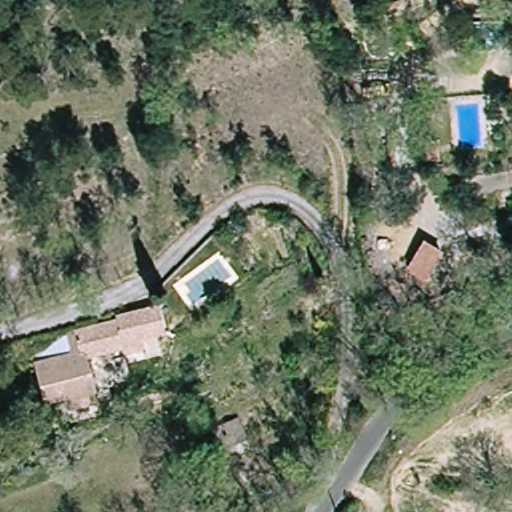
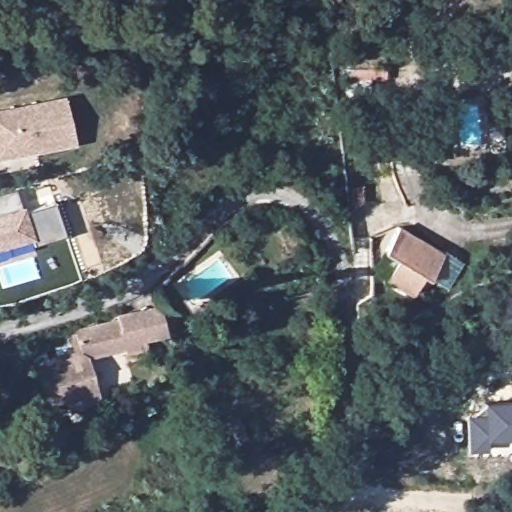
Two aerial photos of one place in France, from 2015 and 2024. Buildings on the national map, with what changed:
new [(76,144),(0,159),(0,111),(65,97),(76,144)]
new [(65,235),(34,240),(0,250),(0,216),(23,209),(26,212),(55,204),(65,235)]
new [(410,263),(425,272),(409,295),(384,280),(396,260),(383,251),(401,225),(424,240),(410,263)]
unchanged [(424,240),(444,251),(429,275),(410,263),(424,240)]
unchanged [(111,319),(124,316),(141,311),(149,308),(156,335),(141,339),(137,340),(139,349),(118,355),(117,350),(99,355),(92,328),(111,322),(111,319)]
unchanged [(59,414),(57,406),(55,402),(38,407),(28,366),(68,355),(63,336),(92,328),(99,355),(81,360),(91,397),(93,405),(59,414)]
new [(485,437),(485,448),(466,448),(466,414),(471,414),(484,400),(512,399),(512,437),(485,437)]
unchanged [(203,439),(213,435),(232,427),(241,448),(222,456),(221,452),(209,456),(203,439)]

